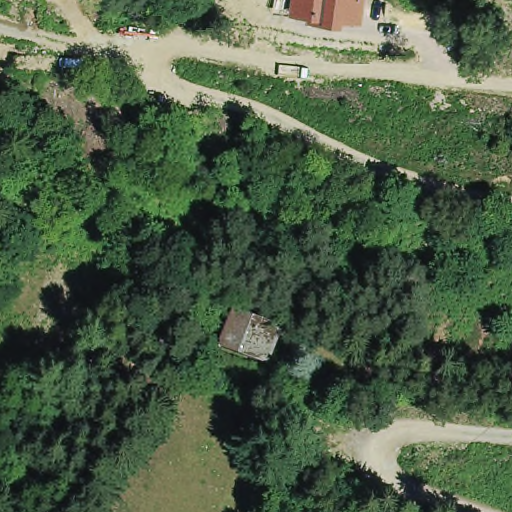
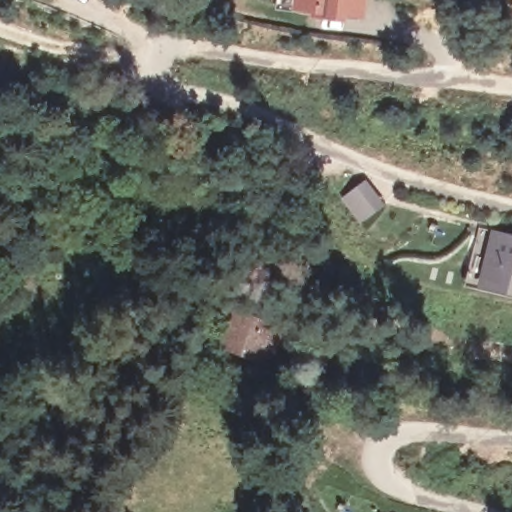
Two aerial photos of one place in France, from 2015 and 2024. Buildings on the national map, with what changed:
unchanged [(366,20),(348,18),(347,23),(311,18),(312,13),(292,10),(294,0),(368,0),(366,20)]
new [(378,203),(352,224),(330,191),(360,175),(378,203)]
new [(493,230),(512,235),(512,295),(479,286),(493,230)]
unchanged [(281,326),(268,359),(226,342),(239,310),(281,326)]

